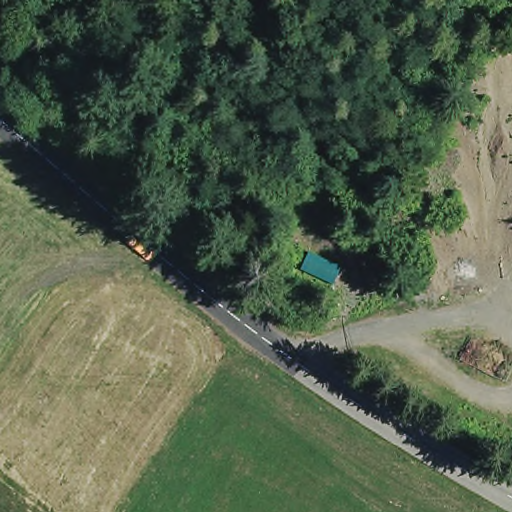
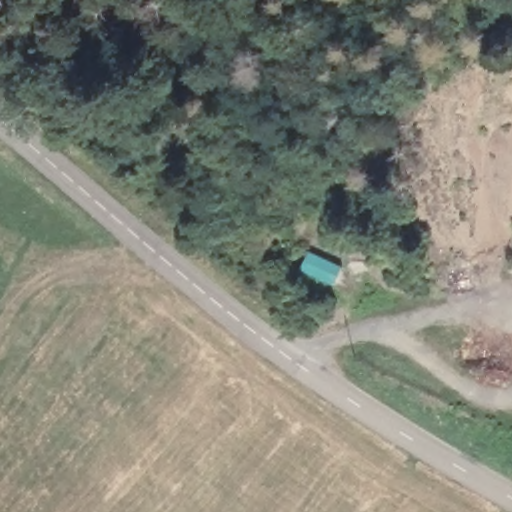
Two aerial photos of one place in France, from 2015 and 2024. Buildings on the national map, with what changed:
[]

